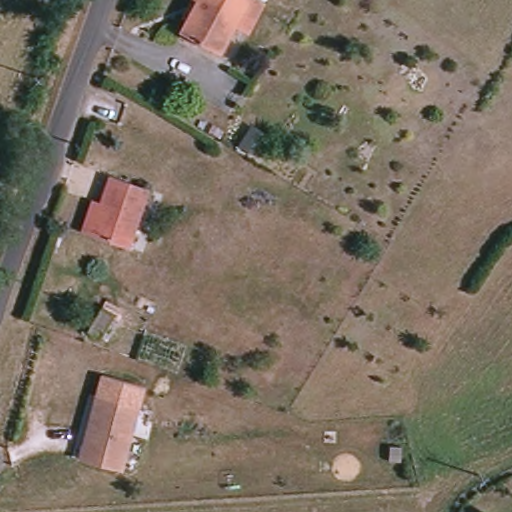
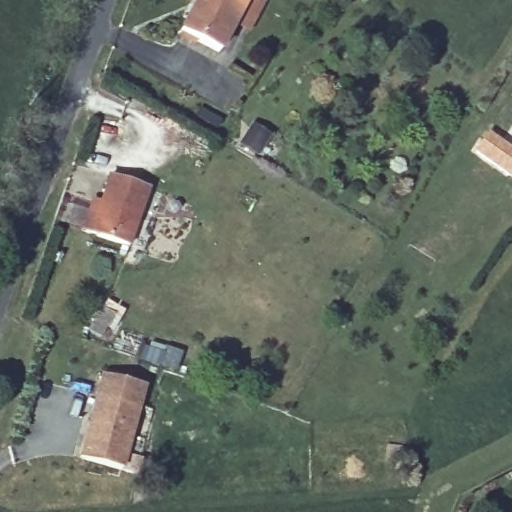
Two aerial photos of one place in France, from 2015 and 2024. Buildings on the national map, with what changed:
unchanged [(180,33),(197,0),(244,0),(216,53),(180,33)]
new [(512,149),(512,173),(508,178),(473,151),(488,131),(512,149)]
unchanged [(99,208),(109,174),(146,185),(130,244),(91,232),(81,229),(89,204),(99,208)]
unchanged [(141,406),(125,469),(84,459),(100,396),(141,406)]

